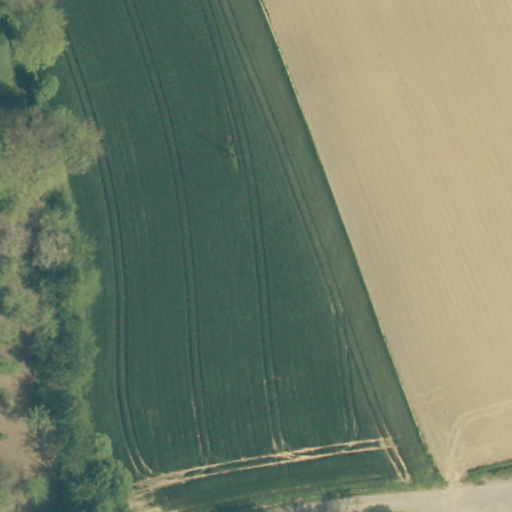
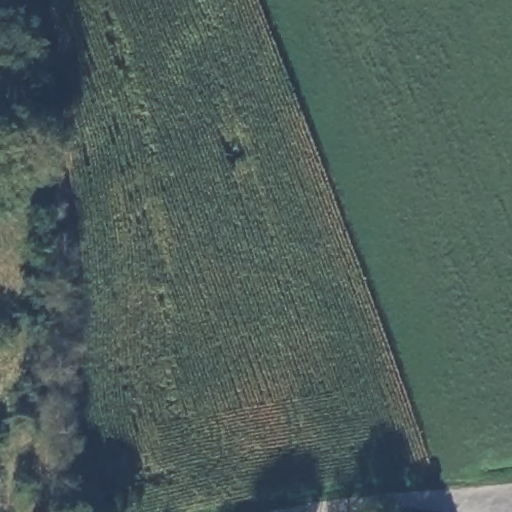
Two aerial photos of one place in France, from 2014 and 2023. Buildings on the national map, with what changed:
[]

